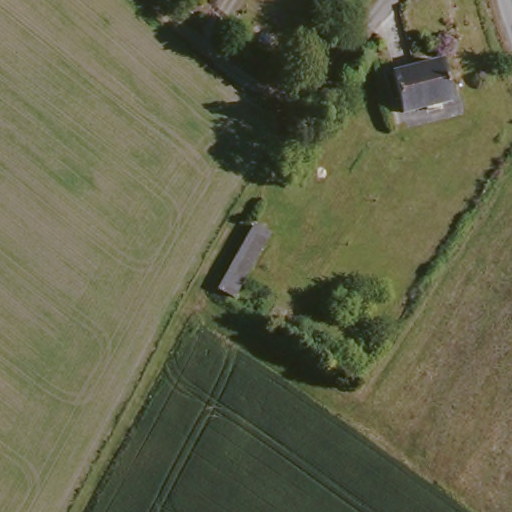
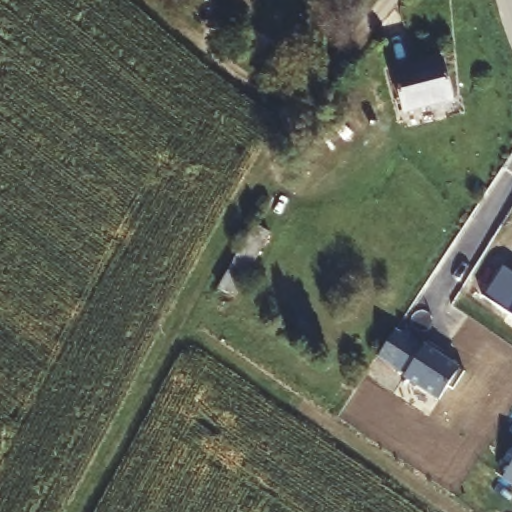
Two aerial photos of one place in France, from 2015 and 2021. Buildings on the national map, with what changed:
unchanged [(442,64),(450,106),(398,118),(388,76),(442,64)]
unchanged [(248,223),(265,236),(230,301),(212,288),(248,223)]
new [(512,270),(512,314),(482,295),(502,263),(512,270)]
new [(405,337),(420,346),(423,339),(440,350),(437,354),(460,368),(448,386),(443,383),(435,396),(400,375),(402,373),(388,364),(405,337)]
new [(512,484),(501,476),(512,460),(512,484)]

